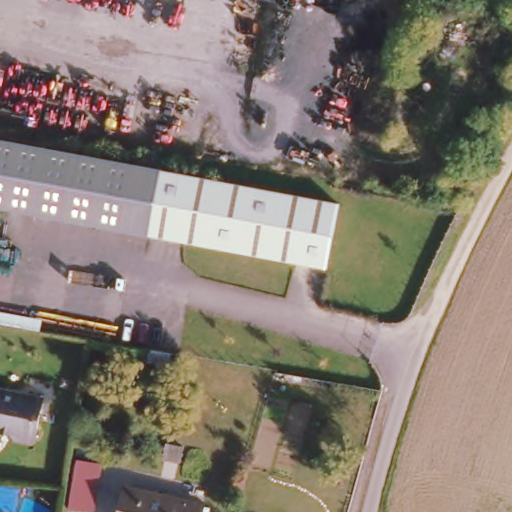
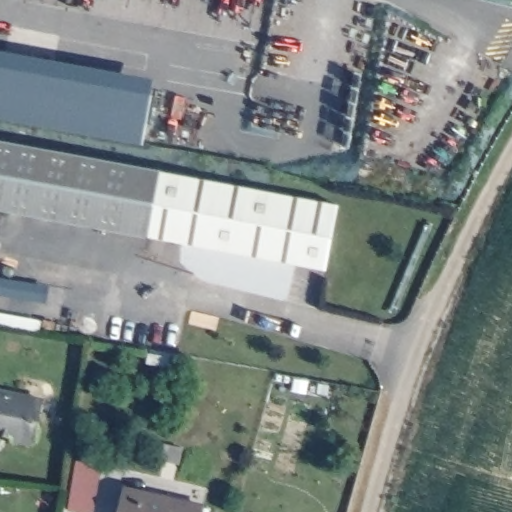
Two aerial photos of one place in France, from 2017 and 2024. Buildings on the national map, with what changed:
new [(142,145),(0,120),(0,51),(154,80),(142,145)]
unchanged [(129,230),(0,208),(0,140),(139,166),(129,230)]
unchanged [(129,230),(139,166),(166,171),(156,235),(129,230)]
unchanged [(344,202),(334,266),(156,235),(166,171),(344,202)]
unchanged [(30,435),(26,438),(9,434),(6,430),(0,428),(0,387),(38,395),(30,435)]
new [(102,465),(94,512),(77,512),(68,511),(76,461),(102,465)]
unchanged [(201,512),(121,512),(125,488),(203,503),(201,512)]

